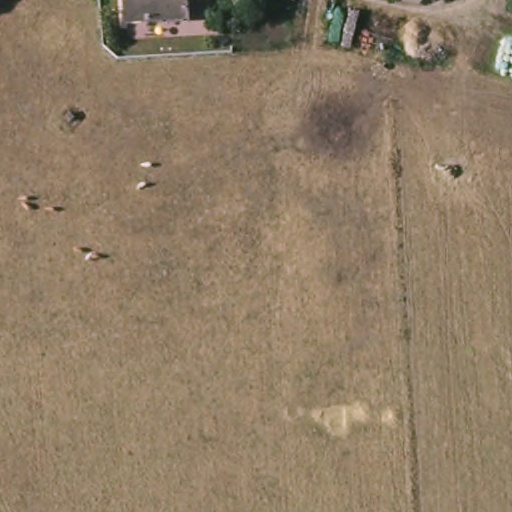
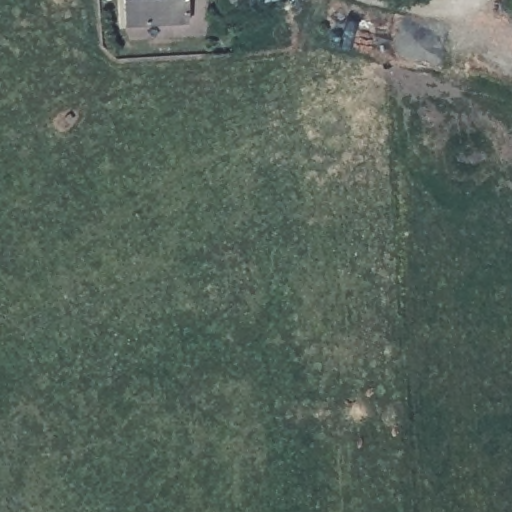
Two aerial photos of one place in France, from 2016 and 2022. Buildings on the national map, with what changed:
unchanged [(125,29),(123,0),(186,0),(187,25),(125,29)]
unchanged [(223,0),(271,0),(227,13),(223,0)]

